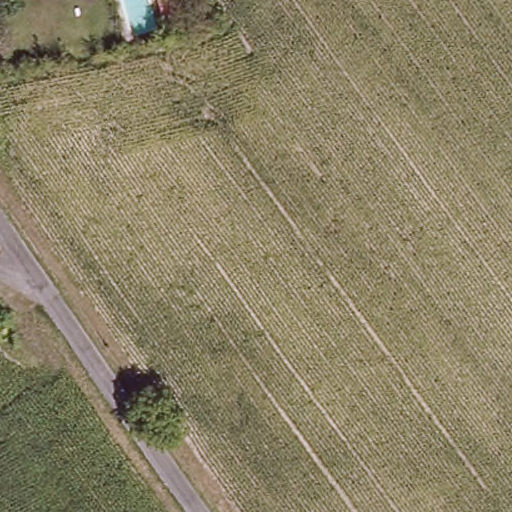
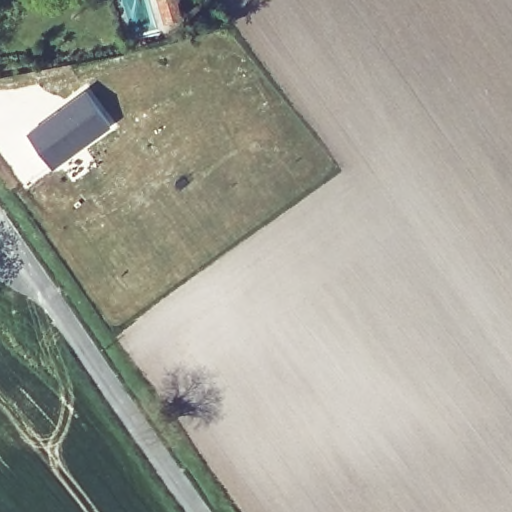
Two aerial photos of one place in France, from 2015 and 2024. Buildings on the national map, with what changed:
unchanged [(159,0),(175,0),(179,15),(165,20),(159,0)]
new [(87,89),(112,124),(56,165),(30,131),(87,89)]

